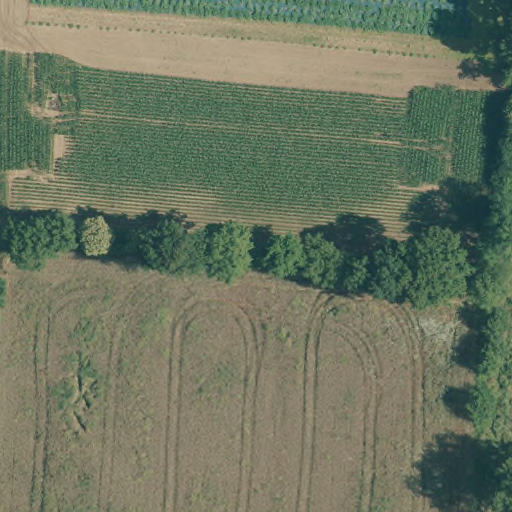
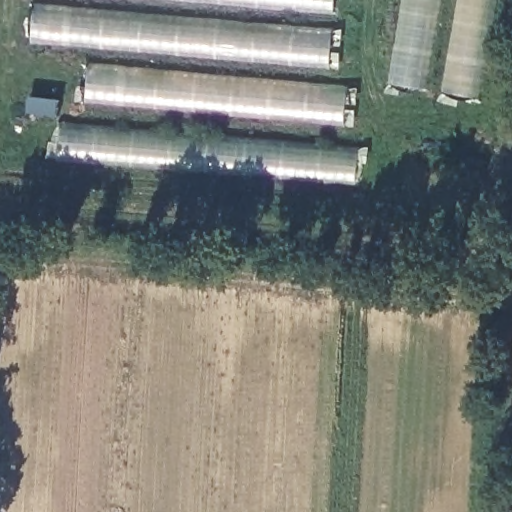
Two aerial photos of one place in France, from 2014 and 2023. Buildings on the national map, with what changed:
new [(350,91),(344,145),(360,147),(356,184),(55,160),(57,121),(83,123),(88,49),(27,43),(30,0),(337,0),(331,89),(350,91)]
new [(390,85),(405,0),(440,0),(423,91),(390,85)]
new [(442,95),(459,0),(494,0),(476,100),(442,95)]

